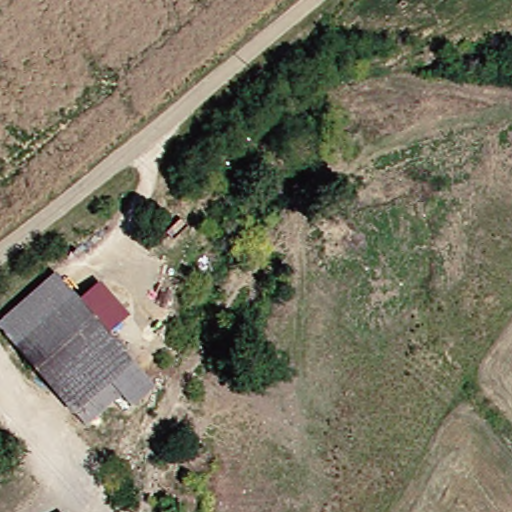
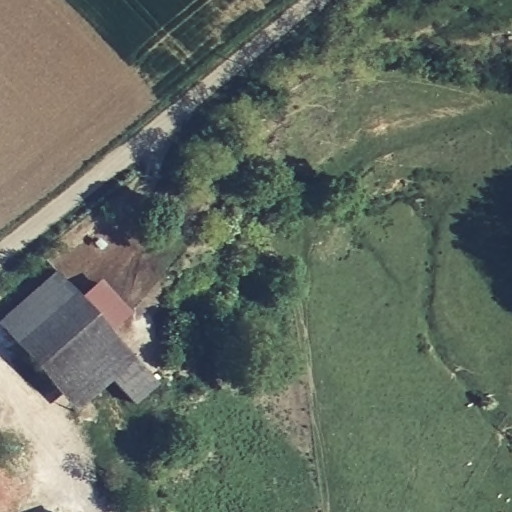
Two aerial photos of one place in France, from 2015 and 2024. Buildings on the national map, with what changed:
unchanged [(154,386),(133,406),(122,395),(87,428),(0,337),(0,323),(52,276),(154,386)]

